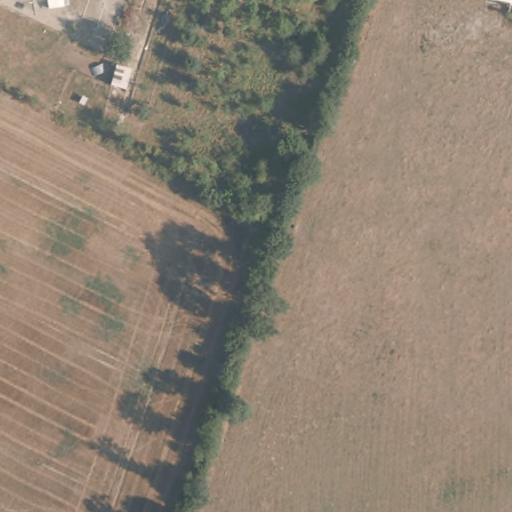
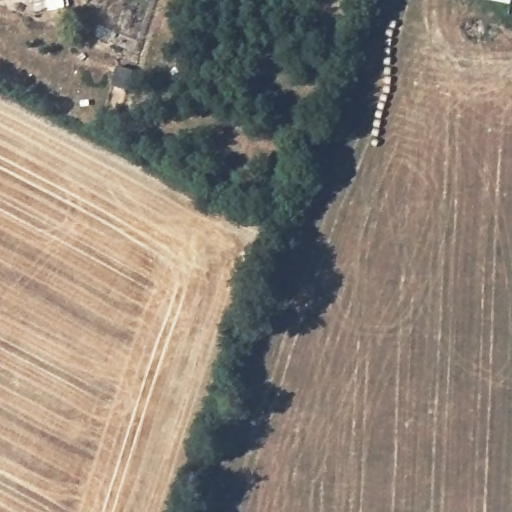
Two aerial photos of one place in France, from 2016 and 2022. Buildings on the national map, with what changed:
unchanged [(484,5),(485,0),(512,0),(512,11),(484,5)]

